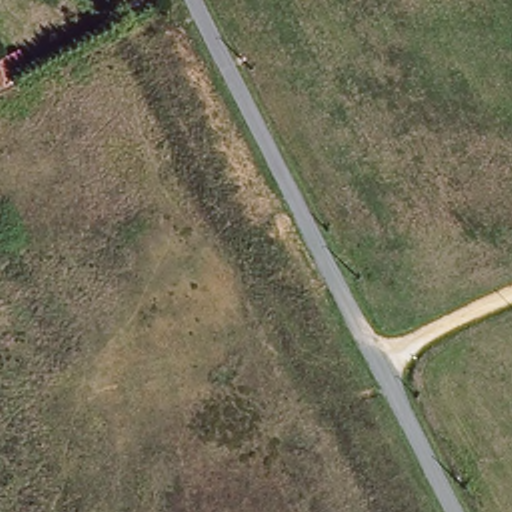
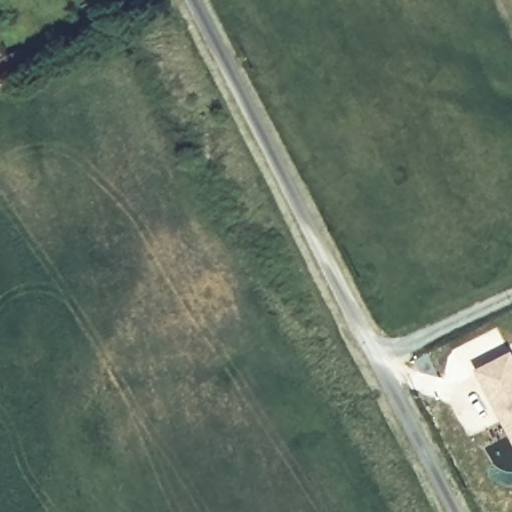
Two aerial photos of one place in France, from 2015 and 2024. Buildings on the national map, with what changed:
new [(512,354),(512,444),(474,370),(510,351),(512,354)]

